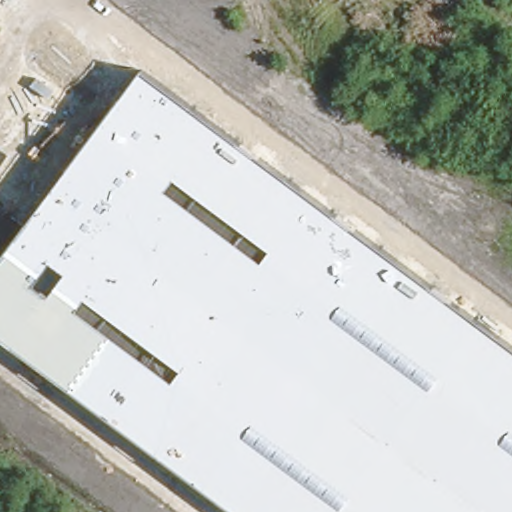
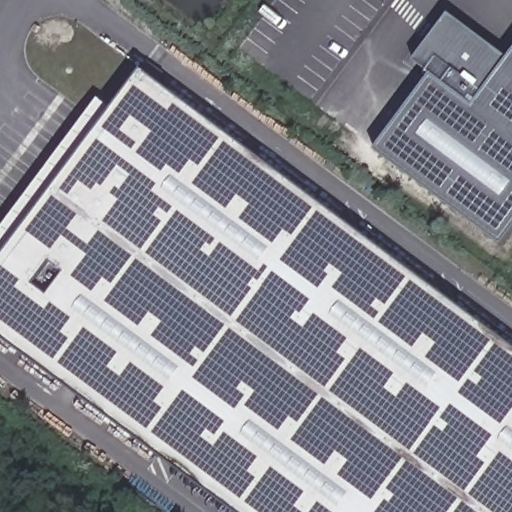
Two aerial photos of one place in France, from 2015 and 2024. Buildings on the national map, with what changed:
new [(500,246),(375,151),(432,74),(413,60),(448,17),(507,59),(512,53),(512,228),(500,246)]
unchanged [(234,512),(0,338),(0,261),(141,73),(512,348),(512,512),(234,512)]

